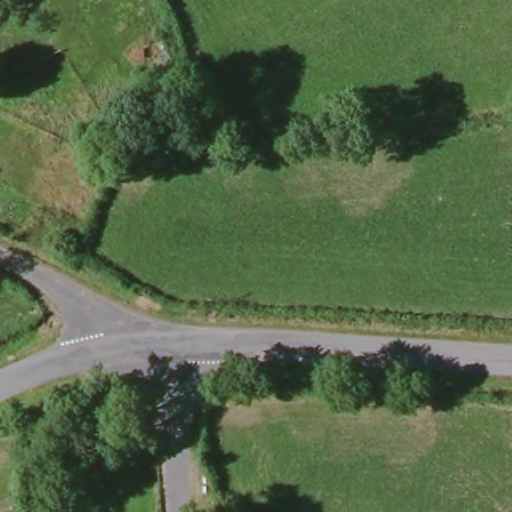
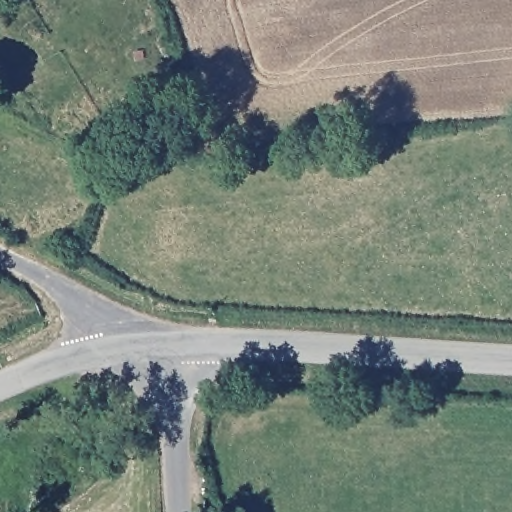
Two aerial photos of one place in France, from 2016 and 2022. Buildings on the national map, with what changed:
[]

